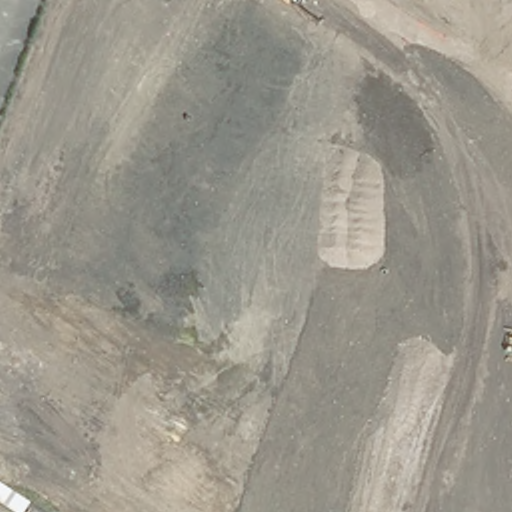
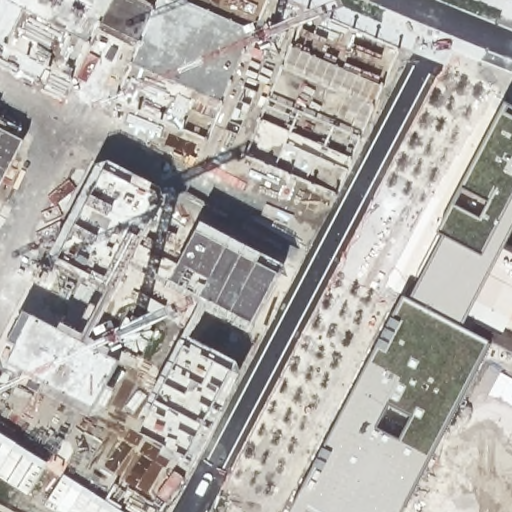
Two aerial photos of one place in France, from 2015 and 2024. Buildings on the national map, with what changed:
new [(138,50),(101,30),(94,42),(26,9),(9,45),(0,41),(0,0),(147,0),(156,4),(158,0),(178,0),(255,31),(224,102),(212,139),(187,129),(200,92),(132,65),(138,50)]
new [(304,8),(400,49),(338,193),(245,156),(304,8)]
new [(491,343),(404,512),(292,512),(406,295),(415,299),(447,236),(440,232),(506,102),(512,105),(512,234),(506,246),(512,249),(512,355),(491,343)]
new [(0,191),(0,128),(25,142),(0,191)]
new [(168,199),(114,295),(61,268),(54,253),(101,163),(112,160),(165,187),(168,199)]
new [(265,252),(285,263),(280,272),(254,328),(210,307),(194,338),(247,363),(191,468),(164,453),(169,443),(146,431),(156,409),(150,404),(204,302),(181,291),(185,285),(174,279),(205,220),(265,252)]
new [(119,389),(109,409),(93,414),(43,390),(40,397),(18,385),(21,379),(6,372),(1,359),(11,340),(27,310),(61,328),(64,321),(114,347),(111,354),(121,360),(109,384),(119,389)]
demolished [(24,491),(16,504),(0,494),(0,476),(19,488),(24,491)]

